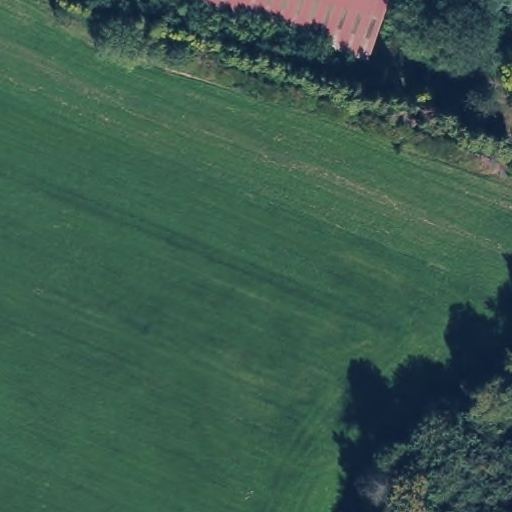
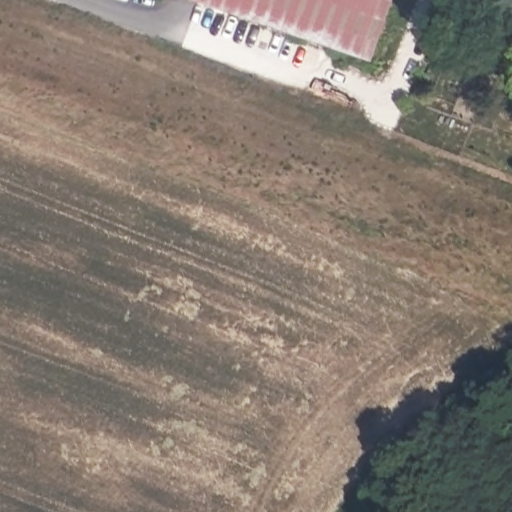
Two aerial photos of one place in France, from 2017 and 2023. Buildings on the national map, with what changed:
unchanged [(385,0),(363,67),(173,0),(385,0)]
unchanged [(512,42),(498,38),(505,12),(512,13),(512,42)]

